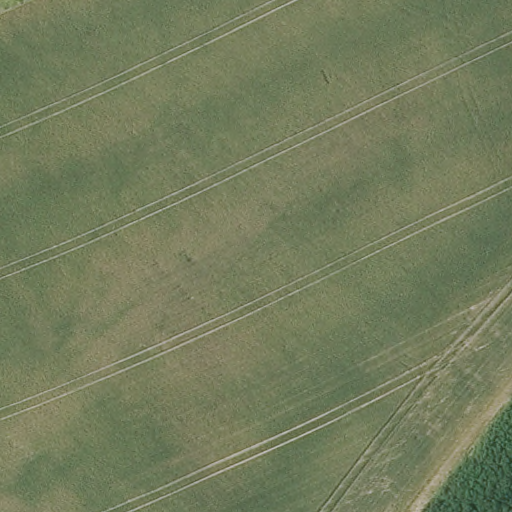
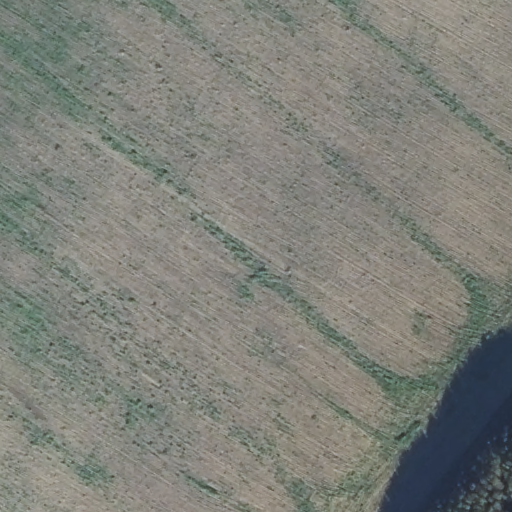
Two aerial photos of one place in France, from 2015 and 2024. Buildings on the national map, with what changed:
[]

